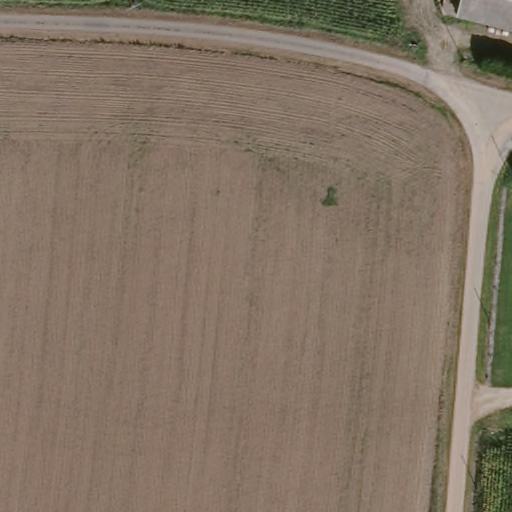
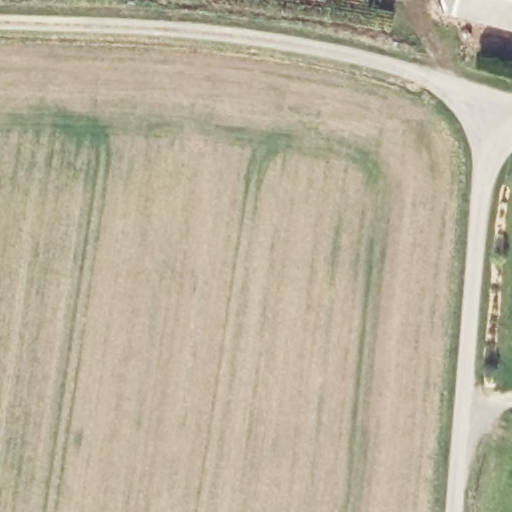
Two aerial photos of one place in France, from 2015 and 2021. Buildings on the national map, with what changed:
unchanged [(454,17),(458,0),(512,0),(512,31),(454,17)]

